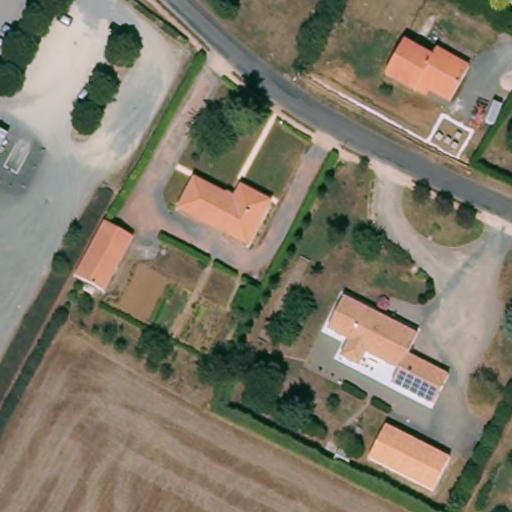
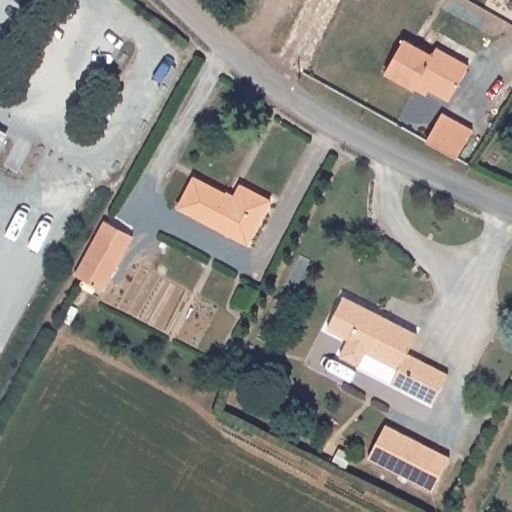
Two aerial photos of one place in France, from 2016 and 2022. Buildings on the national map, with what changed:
unchanged [(403,41),(434,54),(437,47),(470,66),(452,99),(431,89),(427,97),(386,75),(403,41)]
new [(442,114),(473,130),(459,158),(428,142),(442,114)]
unchanged [(199,179),(235,197),(242,187),(272,202),(247,247),(181,212),(199,179)]
unchanged [(134,235),(101,291),(76,275),(107,219),(134,235)]
unchanged [(400,371),(368,353),(361,366),(341,356),(350,339),(333,328),(349,299),(420,337),(411,353),(448,376),(432,406),(405,391),(393,385),(400,371)]
unchanged [(449,456),(432,490),(369,460),(385,427),(449,456)]

